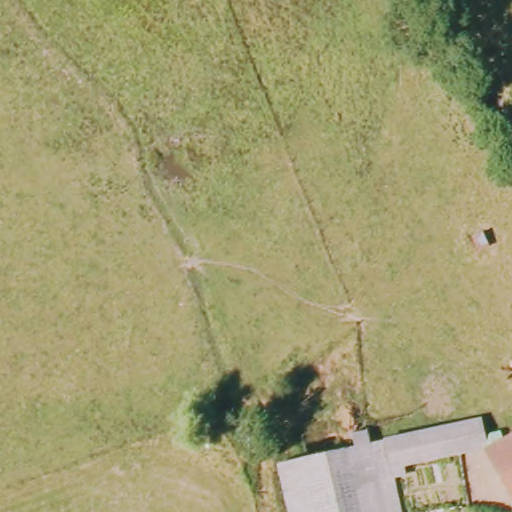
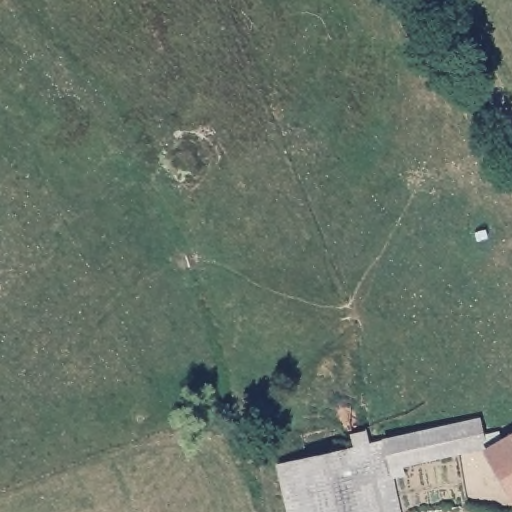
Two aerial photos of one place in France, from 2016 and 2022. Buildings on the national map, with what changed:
unchanged [(270,479),(472,434),(482,454),(369,479),(304,497),(307,512),(277,512),(270,479)]
unchanged [(512,449),(512,512),(483,461),(482,454),(512,449)]
unchanged [(369,479),(482,454),(483,461),(404,479),(405,488),(386,494),(390,512),(307,512),(304,497),(369,479)]

